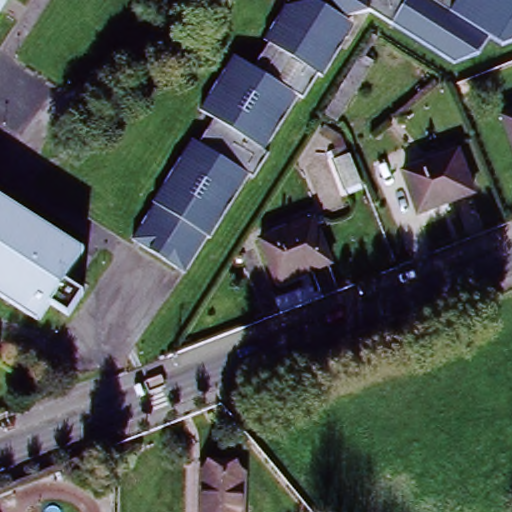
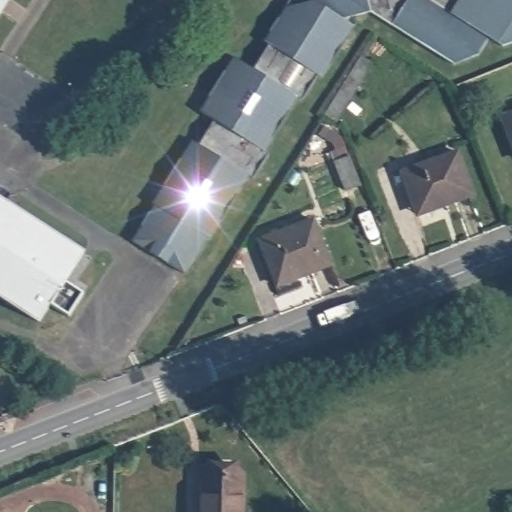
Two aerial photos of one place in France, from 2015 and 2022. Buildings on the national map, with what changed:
unchanged [(8,0),(0,12),(0,0),(8,0)]
unchanged [(291,92),(285,89),(261,124),(197,84),(223,45),(243,57),(257,36),(253,31),(260,24),(277,0),(281,0),(311,0),(334,15),(339,29),(317,60),(310,70),(307,69),(291,92)]
unchanged [(362,5),(334,15),(311,0),(380,0),(372,11),(362,5)]
unchanged [(482,51),(471,70),(451,76),(370,26),(373,22),(387,0),(512,0),(512,53),(497,59),(482,51)]
unchanged [(197,112),(184,104),(197,84),(261,124),(239,156),(190,124),(197,112)]
unchanged [(512,120),(512,153),(501,124),(512,120)]
unchanged [(239,156),(192,225),(184,221),(203,190),(156,160),(175,131),(182,135),(190,124),(239,156)]
unchanged [(458,157),(473,194),(423,214),(408,177),(458,157)]
unchanged [(156,160),(203,190),(184,221),(136,191),(156,160)]
unchanged [(10,188),(3,197),(85,249),(67,278),(85,288),(70,315),(50,303),(39,320),(0,296),(0,182),(10,188)]
unchanged [(110,233),(136,191),(184,221),(192,225),(164,266),(110,233)]
unchanged [(260,242),(313,222),(330,265),(277,286),(260,242)]
unchanged [(201,473),(238,464),(248,512),(209,512),(201,473)]

